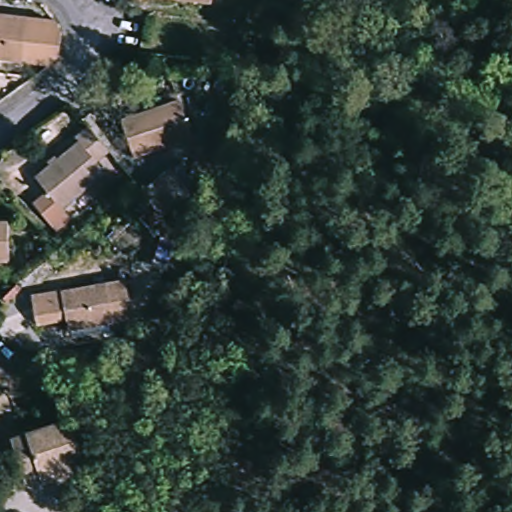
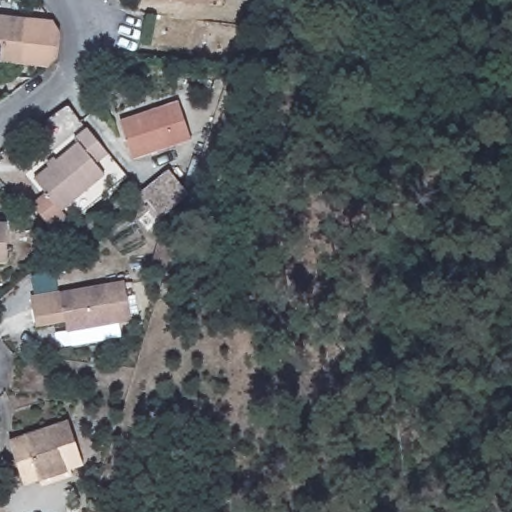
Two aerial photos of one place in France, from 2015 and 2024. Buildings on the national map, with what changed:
unchanged [(194,0),(208,0),(208,2),(194,0)]
unchanged [(59,20),(58,29),(54,64),(6,58),(5,64),(0,64),(0,13),(59,20)]
unchanged [(184,102),(194,138),(134,157),(123,122),(184,102)]
unchanged [(104,157),(93,164),(104,179),(60,213),(64,218),(51,228),(27,197),(40,187),(34,179),(76,147),(72,142),(85,132),(104,157)]
unchanged [(167,175),(184,196),(156,218),(140,198),(167,175)]
unchanged [(10,225),(9,262),(0,262),(0,225),(10,225)]
unchanged [(121,286),(125,320),(64,329),(62,318),(35,322),(32,300),(121,286)]
unchanged [(42,491),(38,477),(25,481),(14,439),(72,424),(83,465),(73,468),(77,481),(42,491)]

